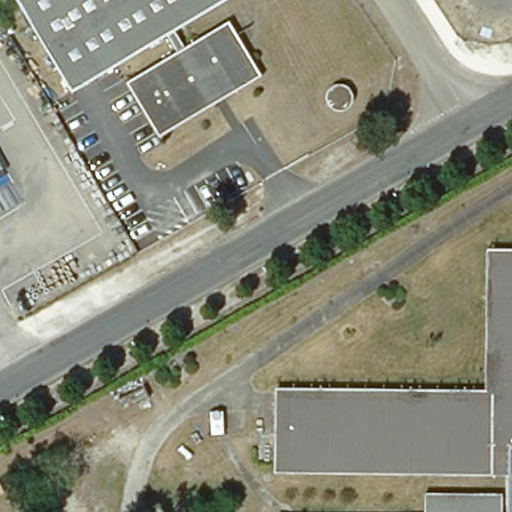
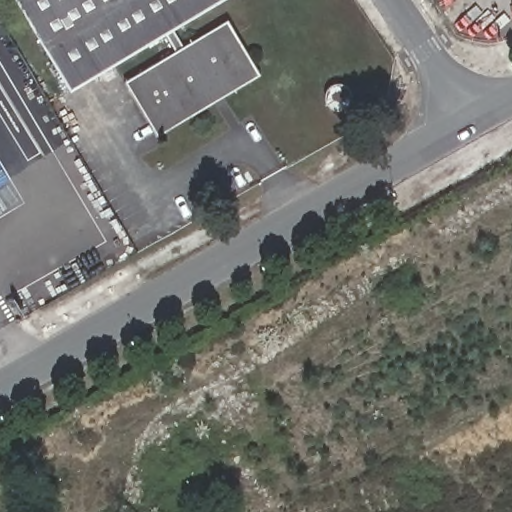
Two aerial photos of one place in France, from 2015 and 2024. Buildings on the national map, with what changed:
unchanged [(136,100),(125,83),(131,80),(176,53),(165,35),(71,91),(16,0),(223,0),(174,30),(185,48),(229,21),(239,38),(261,75),(229,94),(209,106),(158,137),(146,117),(136,100)]
unchanged [(326,97),(327,93),(329,89),(332,88),(335,86),(337,85),(341,86),(344,87),(347,89),(350,93),(351,96),(351,101),(349,105),(347,107),(343,109),(342,110),(340,110),(337,110),(333,110),(330,107),(327,105),(326,101),(326,97)]
demolished [(273,472),(275,394),(489,396),(491,257),(512,257),(512,512),(506,512),(507,474),(273,472)]
demolished [(500,500),(500,512),(425,512),(426,500),(500,500)]

